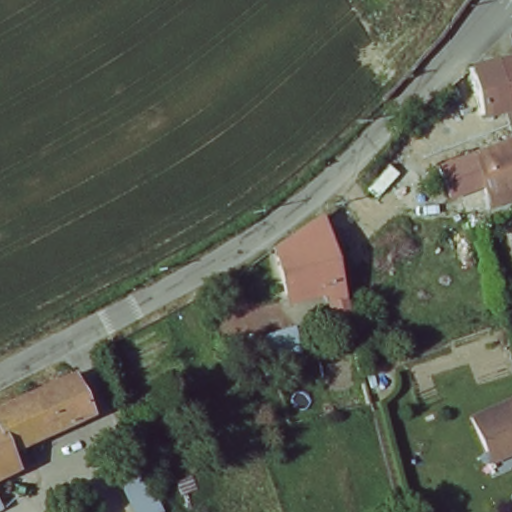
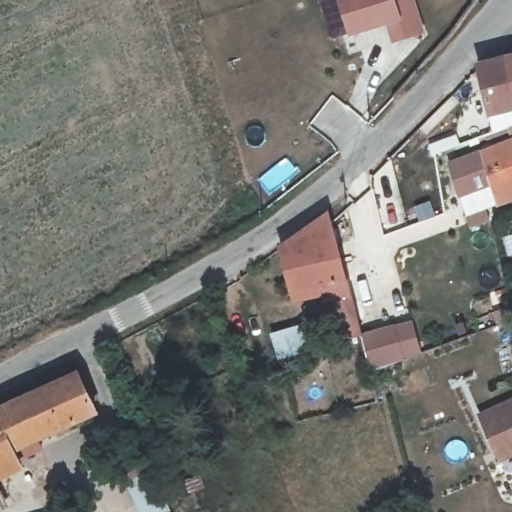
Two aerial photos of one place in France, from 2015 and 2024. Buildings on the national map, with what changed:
new [(393,44),(386,25),(367,31),(350,37),(339,0),(415,0),(425,33),(393,44)]
unchanged [(512,53),(512,103),(501,56),(512,53)]
unchanged [(501,56),(512,103),(512,111),(490,117),(477,68),(483,61),(501,56)]
unchanged [(512,141),(512,194),(493,199),(480,149),(512,141)]
new [(493,199),(499,221),(469,231),(448,161),(480,149),(493,199)]
unchanged [(345,341),(328,287),(292,297),(279,249),(327,213),(359,338),(345,341)]
new [(360,334),(411,319),(420,350),(415,352),(416,355),(369,369),(360,334)]
unchanged [(303,323),(312,349),(280,360),(271,336),(303,323)]
unchanged [(75,367),(96,409),(14,451),(21,466),(0,477),(0,405),(75,367)]
unchanged [(488,450),(473,416),(512,398),(512,451),(493,460),(488,450)]
unchanged [(153,472),(171,512),(145,512),(132,482),(153,472)]
unchanged [(3,506),(0,508),(0,499),(3,506)]

